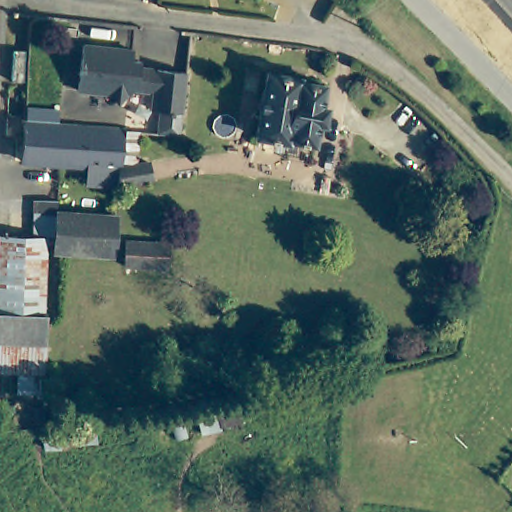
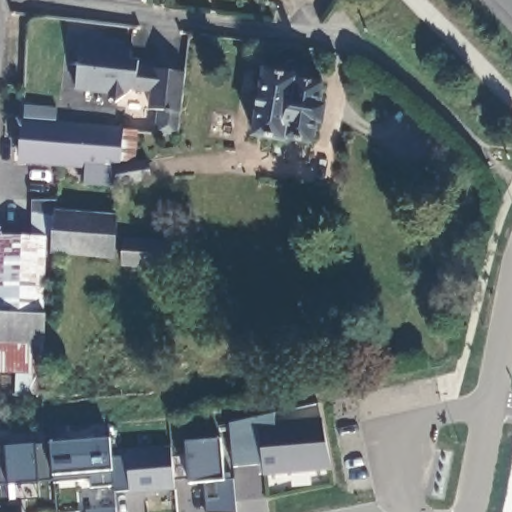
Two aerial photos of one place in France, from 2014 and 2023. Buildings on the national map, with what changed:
unchanged [(144,103),(137,102),(139,88),(121,86),(105,99),(96,88),(62,83),(67,39),(115,46),(113,62),(160,69),(169,70),(164,132),(154,132),(141,131),(144,103)]
unchanged [(304,81),(303,84),(325,87),(322,107),(328,109),(325,125),(319,124),(315,146),(290,142),(290,146),(259,141),(269,75),(304,81)]
unchanged [(45,161),(22,159),(27,120),(66,123),(63,162),(45,161)]
unchanged [(139,134),(137,162),(122,161),(121,167),(63,162),(66,123),(124,129),(139,130),(139,134)]
unchanged [(116,254),(100,252),(56,249),(56,237),(32,236),(31,199),(59,200),(58,212),(119,217),(116,254)]
unchanged [(47,305),(46,365),(0,364),(0,235),(47,237),(45,292),(45,302),(47,305)]
unchanged [(169,242),(167,265),(126,262),(127,239),(169,242)]
new [(284,422),(285,432),(331,428),(340,474),(273,482),(272,473),(242,477),(239,432),(284,422)]
new [(174,489),(130,493),(129,488),(114,490),(113,484),(92,486),(90,478),(58,482),(39,480),(0,484),(0,446),(6,447),(36,443),(51,443),(110,438),(112,457),(128,456),(127,450),(170,446),(174,489)]
new [(236,512),(207,512),(202,481),(189,482),(185,442),(218,439),(224,479),(236,512)]

